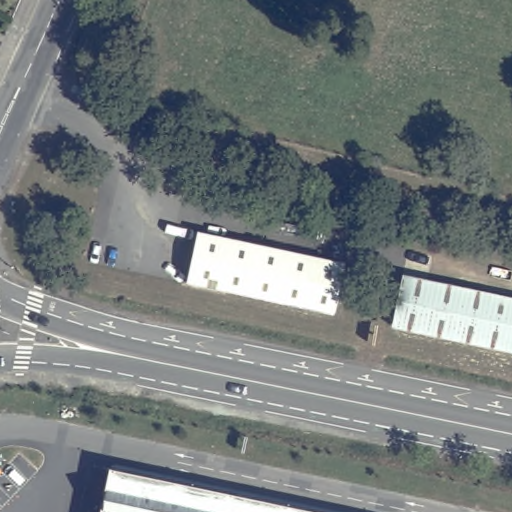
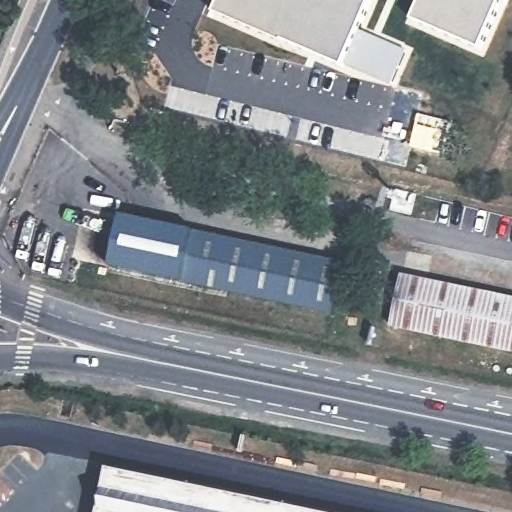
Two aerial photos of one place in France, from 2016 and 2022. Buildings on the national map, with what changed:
new [(371,0),(372,0),(359,31),(406,51),(392,85),(215,12),(220,0),(371,0)]
new [(412,20),(420,0),(503,0),(482,49),(412,20)]
unchanged [(197,229),(345,262),(333,312),(185,280),(197,229)]
unchanged [(407,279),(512,303),(512,355),(396,329),(407,279)]
unchanged [(107,500),(115,469),(312,512),(105,512),(107,500)]

